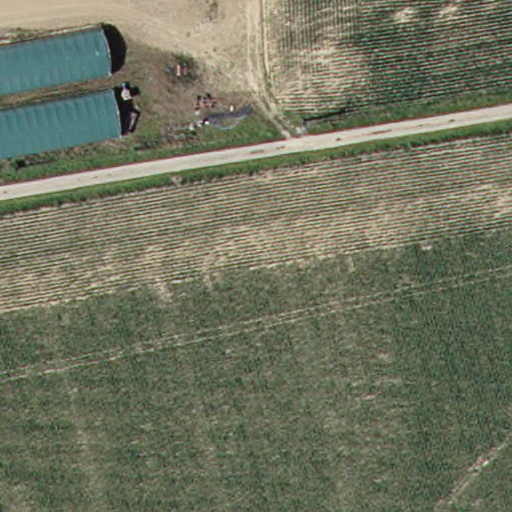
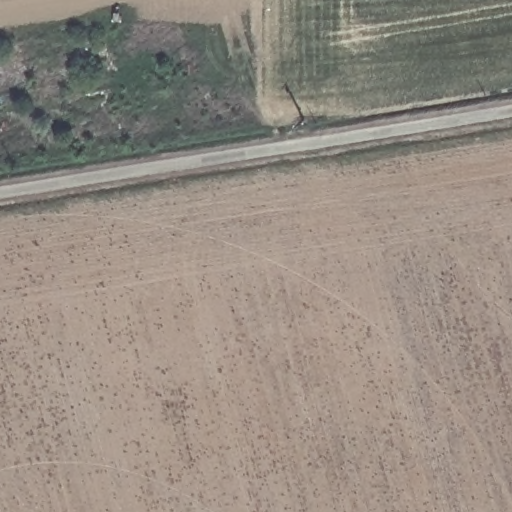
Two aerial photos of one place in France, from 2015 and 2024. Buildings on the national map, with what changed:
demolished [(103,25),(122,135),(0,157),(0,44),(103,25)]

